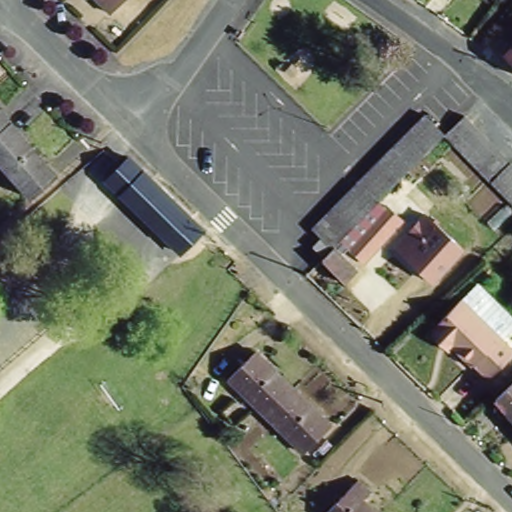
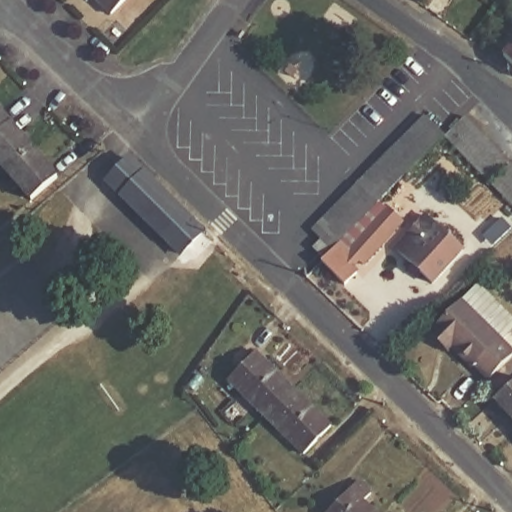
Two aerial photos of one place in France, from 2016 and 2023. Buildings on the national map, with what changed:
unchanged [(99,0),(122,0),(111,11),(99,0)]
unchanged [(512,49),(512,65),(504,57),(512,49)]
unchanged [(0,166),(0,110),(56,175),(28,199),(0,166)]
unchanged [(381,201),(377,204),(357,184),(424,117),(445,137),(443,138),(381,201)]
unchanged [(445,137),(464,117),(507,161),(488,180),(445,137)]
unchanged [(196,238),(181,253),(105,182),(127,159),(202,231),(196,238)]
unchanged [(490,183),(510,164),(512,167),(512,205),(490,183)]
unchanged [(315,229),(356,186),(376,206),(334,248),(317,231),(315,229)]
unchanged [(402,219),(364,261),(346,246),(386,203),(402,219)]
unchanged [(465,247),(433,283),(392,246),(426,211),(465,247)]
unchanged [(321,261),(325,257),(314,246),(321,238),(332,250),(334,248),(358,272),(345,285),(321,261)]
unchanged [(462,301),(512,351),(512,352),(488,375),(477,364),(475,367),(435,328),(462,301)]
unchanged [(266,417),(228,380),(255,352),(292,389),(266,417)]
unchanged [(512,388),(512,413),(500,399),(512,388)]
unchanged [(303,453),(266,417),(292,389),(330,425),(303,453)]
unchanged [(366,498),(358,506),(364,512),(328,512),(353,485),(366,498)]

